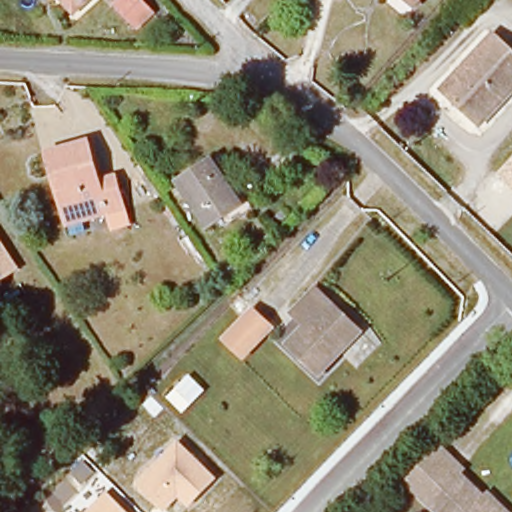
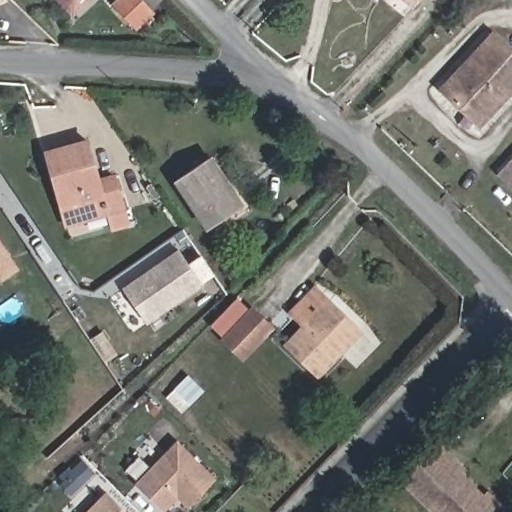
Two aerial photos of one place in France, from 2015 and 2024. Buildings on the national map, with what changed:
new [(0,0),(7,0),(0,3),(0,0)]
unchanged [(72,11),(61,0),(86,0),(72,11)]
unchanged [(148,14),(134,29),(120,9),(130,0),(137,0),(148,14)]
unchanged [(415,6),(407,0),(419,0),(415,6)]
unchanged [(512,47),(512,94),(483,127),(445,91),(496,33),(512,47)]
unchanged [(67,226),(45,153),(88,139),(100,181),(116,174),(125,208),(67,226)]
unchanged [(496,172),(512,156),(512,188),(496,172)]
unchanged [(241,209),(210,230),(176,180),(209,162),(241,209)]
new [(180,251),(204,286),(147,324),(124,290),(180,251)]
unchanged [(0,279),(0,255),(10,272),(0,279)]
unchanged [(323,375),(290,343),(311,322),(295,306),(316,284),(332,301),(364,332),(323,375)]
unchanged [(244,362),(219,340),(253,304),(276,327),(244,362)]
unchanged [(190,377),(205,394),(180,414),(168,398),(190,377)]
unchanged [(216,478),(189,506),(176,496),(164,512),(134,482),(176,439),(216,478)]
unchanged [(459,477),(497,512),(430,512),(403,486),(439,448),(465,471),(459,477)]
unchanged [(128,512),(86,512),(107,491),(128,512)]

